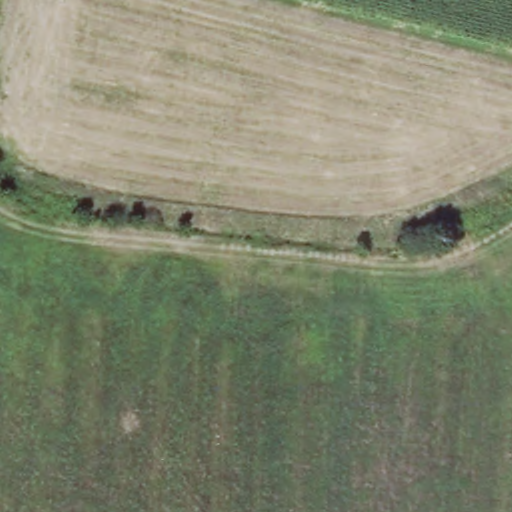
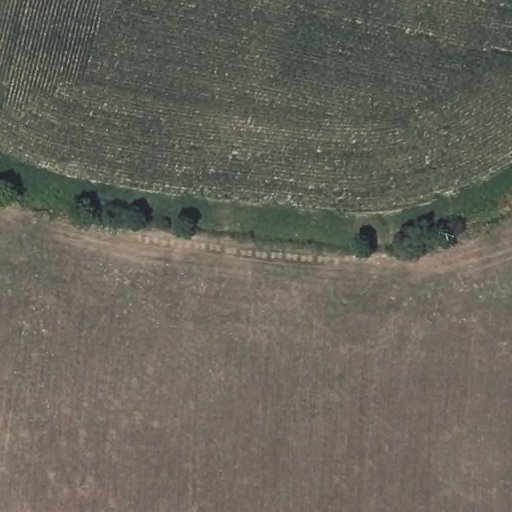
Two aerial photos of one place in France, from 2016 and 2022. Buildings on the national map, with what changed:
[]

